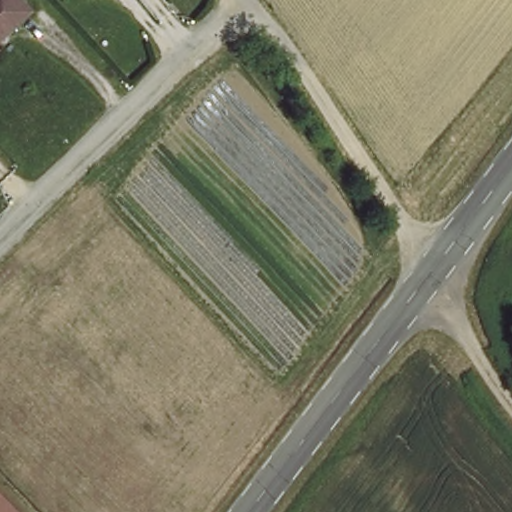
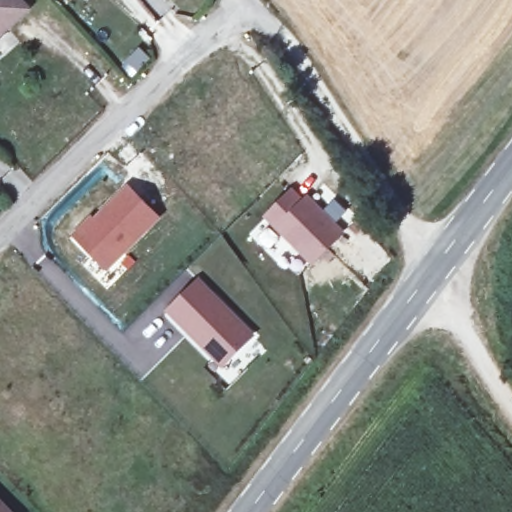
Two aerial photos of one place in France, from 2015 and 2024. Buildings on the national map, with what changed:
unchanged [(31,2),(10,23),(0,32),(0,0),(28,0),(31,2)]
new [(126,181),(161,217),(126,251),(135,261),(127,268),(118,259),(106,271),(68,234),(126,181)]
new [(290,188),(302,199),(307,194),(345,231),(312,266),(263,218),(290,188)]
new [(164,312),(199,277),(255,334),(221,368),(164,312)]
unchanged [(0,512),(0,498),(13,512),(0,512)]

